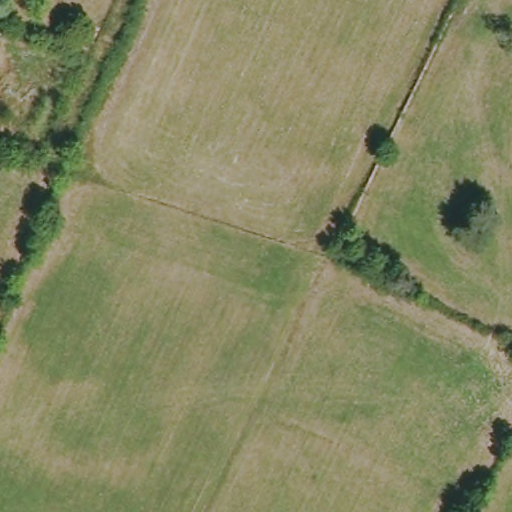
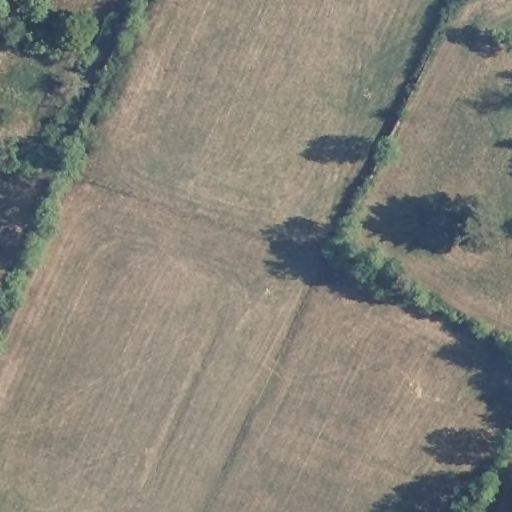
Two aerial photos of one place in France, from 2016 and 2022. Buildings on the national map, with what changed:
[]

